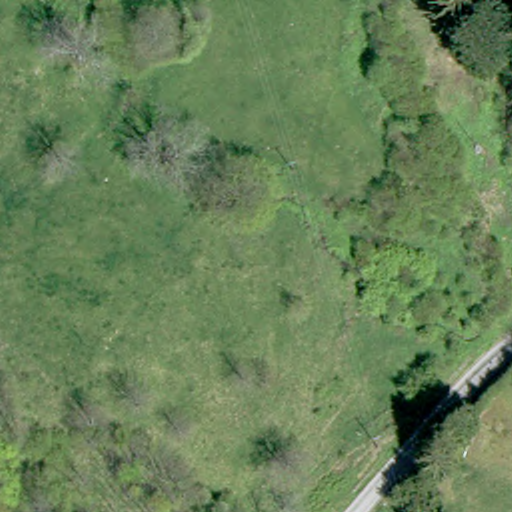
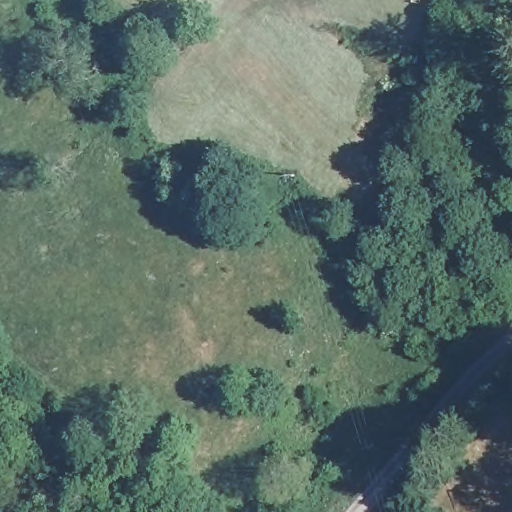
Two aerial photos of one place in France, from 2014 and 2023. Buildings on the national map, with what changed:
unchanged [(512,269),(512,280),(510,270),(512,269)]

